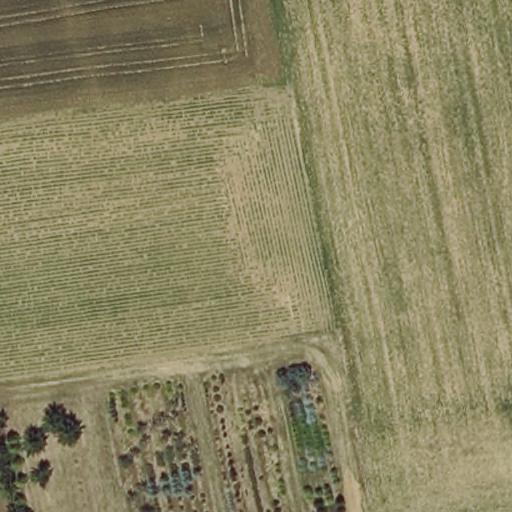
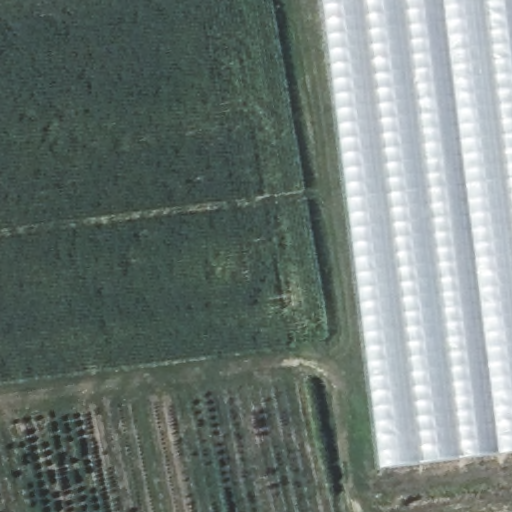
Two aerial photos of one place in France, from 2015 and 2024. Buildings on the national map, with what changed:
demolished [(287,0),(512,0),(512,389),(371,407),(287,0)]
new [(379,471),(320,0),(512,0),(512,455),(379,471)]

